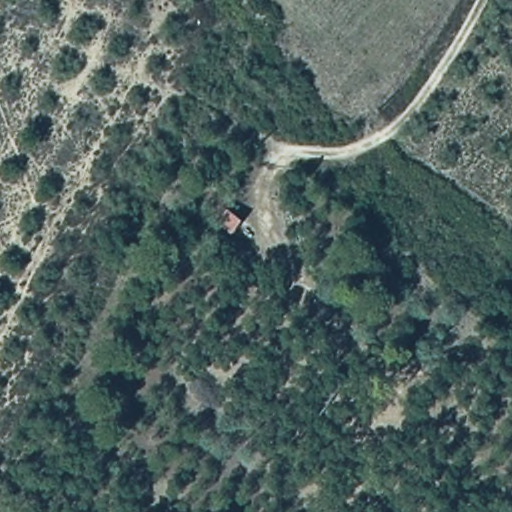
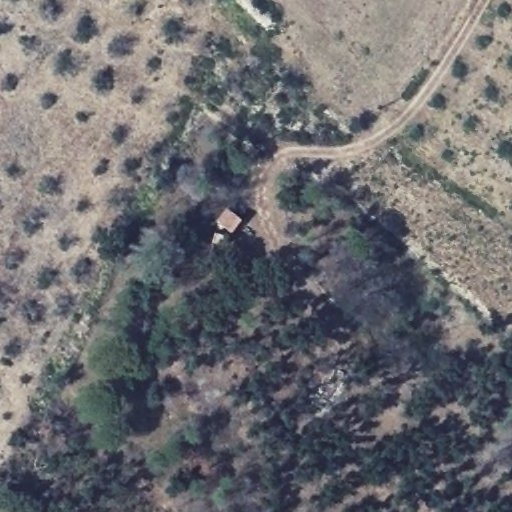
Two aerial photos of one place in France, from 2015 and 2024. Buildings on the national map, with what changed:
unchanged [(243,225),(231,242),(212,228),(224,212),(243,225)]

